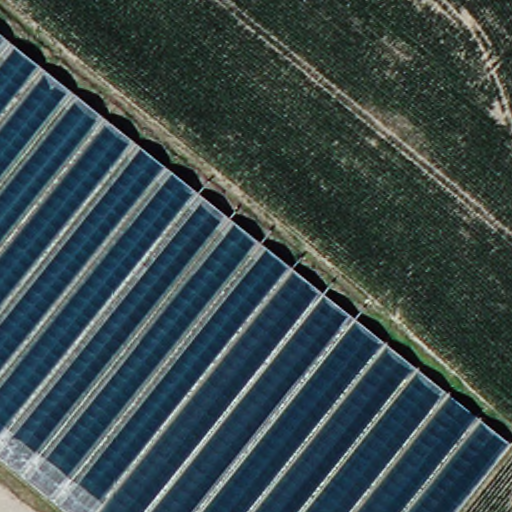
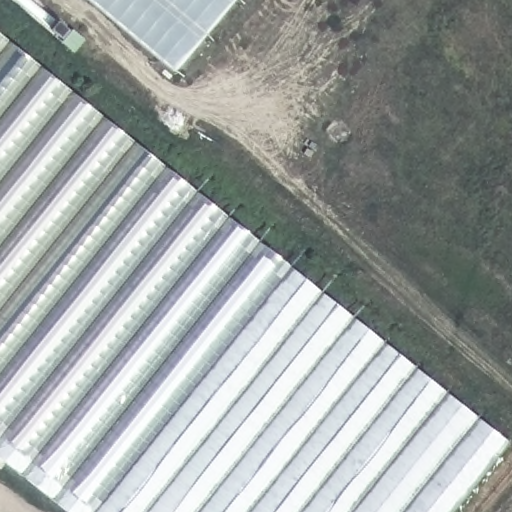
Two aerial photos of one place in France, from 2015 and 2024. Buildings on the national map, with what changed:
new [(84,0),(235,0),(171,72),(84,0)]
unchanged [(436,512),(83,512),(85,508),(0,438),(0,40),(495,437),(436,512)]

